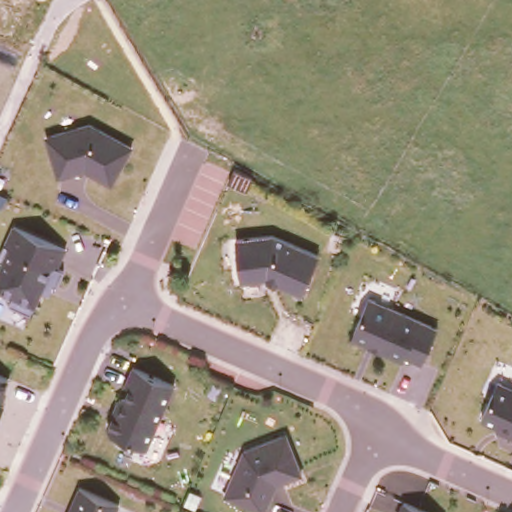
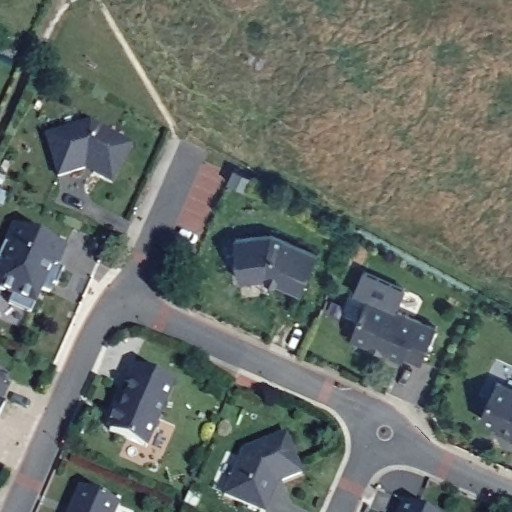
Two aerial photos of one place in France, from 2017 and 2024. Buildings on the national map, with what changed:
unchanged [(87,167),(62,175),(48,136),(89,123),(132,147),(113,184),(87,167)]
unchanged [(60,265),(63,267),(51,293),(42,288),(32,312),(8,303),(11,293),(0,289),(0,259),(6,244),(3,241),(12,219),(68,246),(60,265)]
unchanged [(276,232),(319,253),(301,294),(265,277),(241,280),(234,236),(276,232)]
unchanged [(438,327),(422,363),(404,357),(402,361),(351,337),(369,293),(438,327)]
unchanged [(175,384),(147,449),(104,428),(133,362),(175,384)]
unchanged [(2,400),(5,402),(0,414),(0,370),(13,377),(2,400)]
unchanged [(483,420),(500,380),(512,385),(512,435),(483,420)]
unchanged [(302,472),(276,484),(264,512),(221,495),(243,447),(284,430),(302,472)]
unchanged [(115,512),(66,512),(78,482),(119,502),(115,512)]
unchanged [(395,512),(401,497),(432,512),(395,512)]

